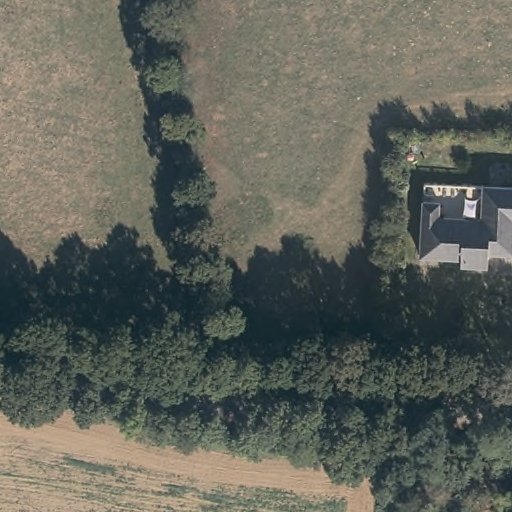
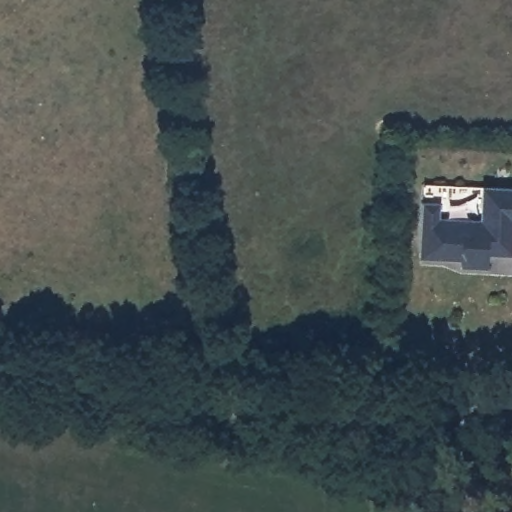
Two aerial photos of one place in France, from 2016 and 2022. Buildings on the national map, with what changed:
unchanged [(425,183),(483,184),(512,186),(512,249),(511,253),(487,252),(487,268),(461,266),(461,255),(421,255),(422,200),(425,183)]

